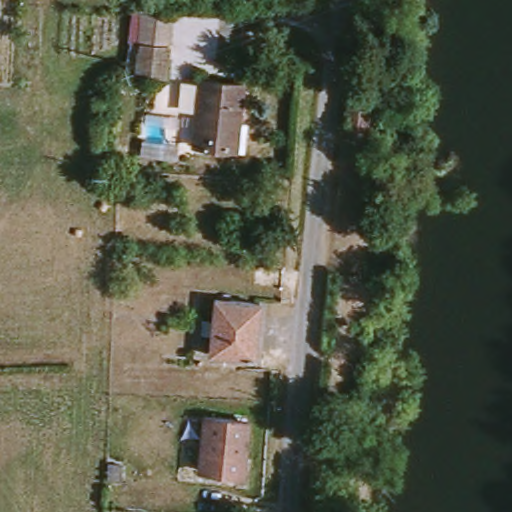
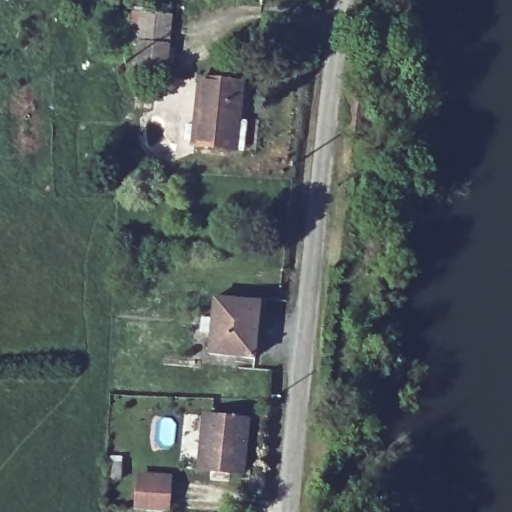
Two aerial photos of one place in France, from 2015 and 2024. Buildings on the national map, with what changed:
unchanged [(170,25),(169,64),(137,65),(137,24),(170,25)]
unchanged [(235,146),(195,143),(183,142),(186,74),(200,74),(240,77),(235,146)]
unchanged [(350,91),(372,94),(367,135),(344,132),(350,91)]
unchanged [(345,272),(370,275),(367,289),(342,285),(345,272)]
unchanged [(212,352),(217,299),(261,303),(256,356),(212,352)]
unchanged [(250,421),(246,469),(210,466),(214,418),(250,421)]
new [(137,473),(174,475),(171,512),(156,512),(135,511),(137,473)]

